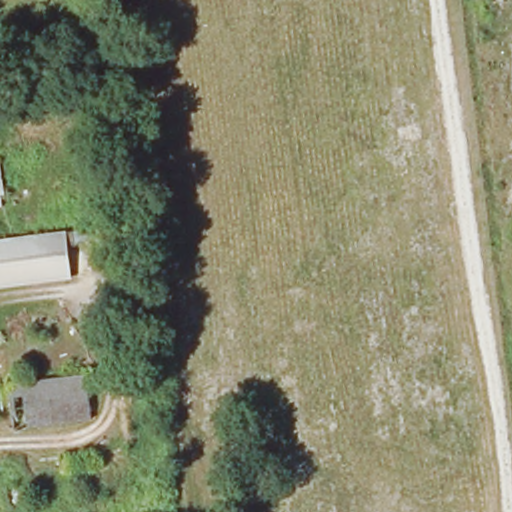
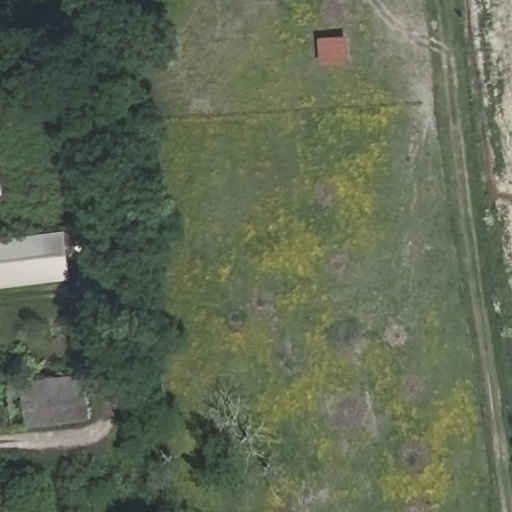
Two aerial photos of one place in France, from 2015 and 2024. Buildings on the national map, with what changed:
unchanged [(2,208),(0,208),(0,171),(3,190),(2,208)]
unchanged [(68,235),(74,283),(0,292),(0,243),(68,235)]
unchanged [(86,378),(90,424),(0,434),(0,391),(86,378)]

